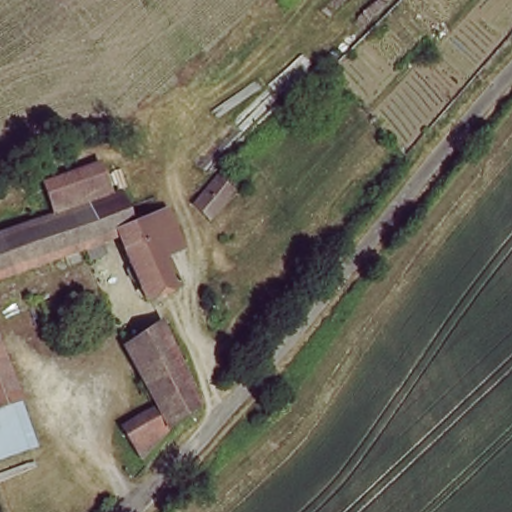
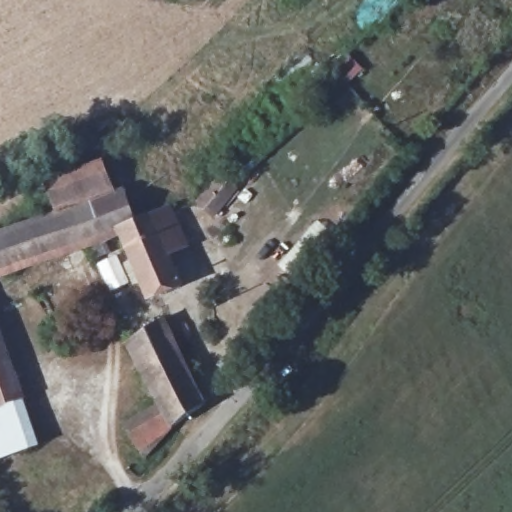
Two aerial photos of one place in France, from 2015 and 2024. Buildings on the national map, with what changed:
unchanged [(55,212),(44,180),(83,166),(101,159),(113,192),(122,189),(134,217),(147,212),(167,257),(180,285),(150,297),(120,230),(0,275),(0,231),(55,212)]
unchanged [(222,172),(236,187),(209,212),(196,197),(222,172)]
unchanged [(172,204),(191,246),(167,257),(147,212),(172,204)]
unchanged [(153,390),(128,335),(167,313),(206,397),(175,420),(153,390)]
unchanged [(35,447),(4,459),(0,448),(0,351),(35,447)]
unchanged [(175,420),(144,447),(122,416),(153,390),(175,420)]

